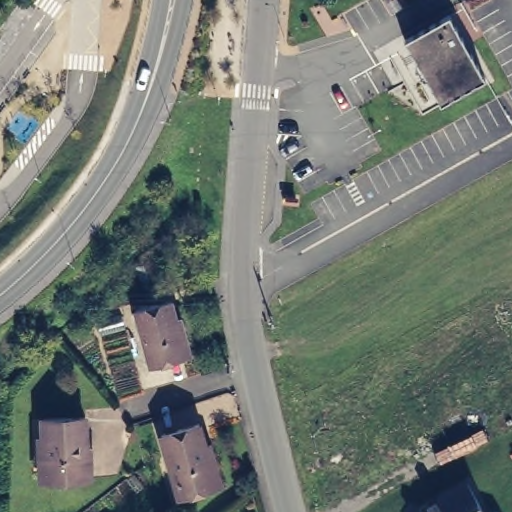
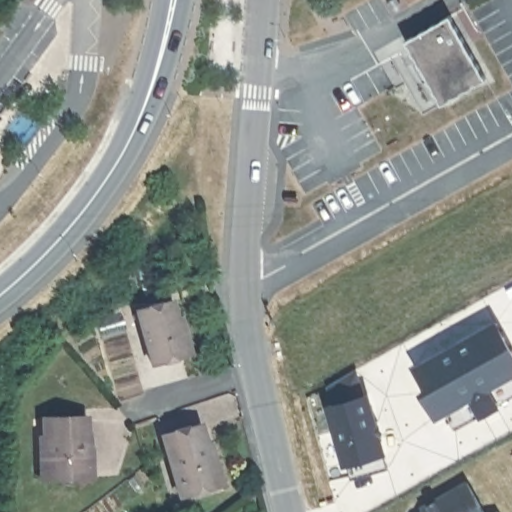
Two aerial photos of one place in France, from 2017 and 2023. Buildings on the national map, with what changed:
unchanged [(409,43),(453,18),(489,81),(446,106),(409,43)]
unchanged [(176,303),(191,358),(158,368),(141,313),(176,303)]
new [(445,413),(436,418),(422,394),(428,390),(416,369),(495,324),(512,354),(512,400),(498,408),(481,418),(456,432),(445,413)]
new [(335,405),(329,387),(354,371),(363,397),(367,396),(376,424),(378,423),(381,437),(379,437),(389,470),(351,481),(346,464),(345,464),(329,407),(335,405)]
unchanged [(94,419),(96,481),(46,483),(44,420),(94,419)]
unchanged [(200,426),(218,489),(181,500),(163,437),(200,426)]
unchanged [(484,512),(425,512),(469,487),(484,512)]

